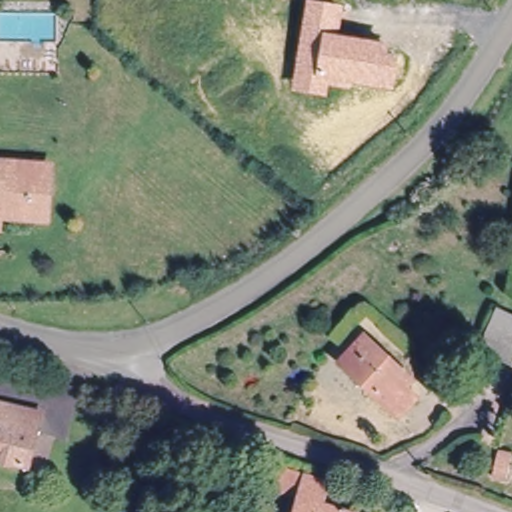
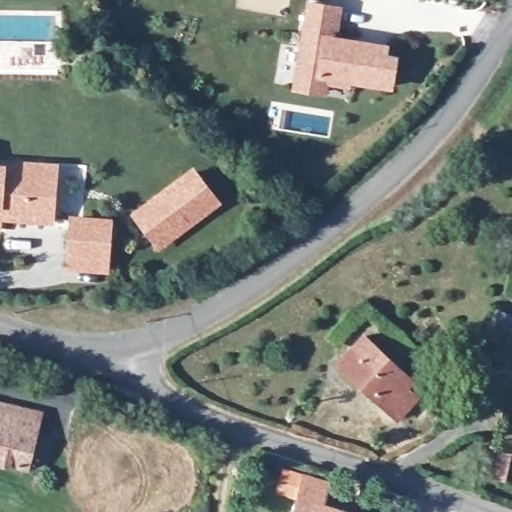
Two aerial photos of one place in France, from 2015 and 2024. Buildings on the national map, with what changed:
unchanged [(340,34),(390,43),(387,53),(398,57),(400,65),(396,87),(351,82),(350,90),(327,86),(325,98),(292,92),(306,0),(312,0),(344,6),(340,34)]
new [(0,162),(7,162),(60,163),(55,224),(4,220),(1,232),(0,232),(0,162)]
demolished [(30,166),(27,215),(26,215),(0,214),(0,165),(28,166),(30,166)]
new [(194,165),(223,203),(159,251),(131,213),(194,165)]
new [(113,218),(109,275),(65,272),(71,215),(113,218)]
unchanged [(503,314),(512,319),(512,366),(484,351),(503,314)]
unchanged [(360,341),(412,386),(406,392),(418,404),(399,423),(336,367),(360,341)]
unchanged [(0,401),(43,412),(29,466),(0,459),(0,401)]
unchanged [(507,458),(502,480),(489,477),(494,454),(507,458)]
unchanged [(300,495),(282,492),(286,475),(331,486),(326,504),(356,512),(295,512),(300,495)]

